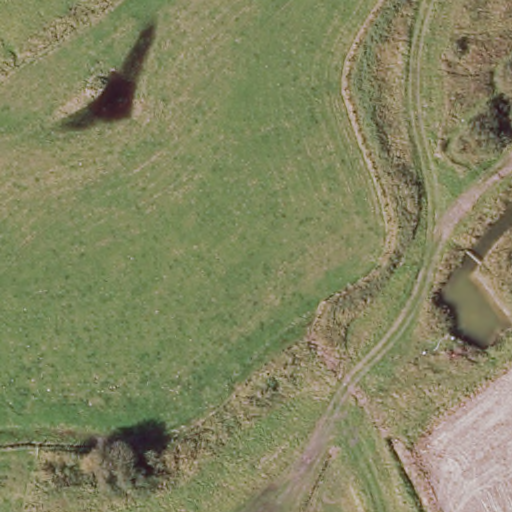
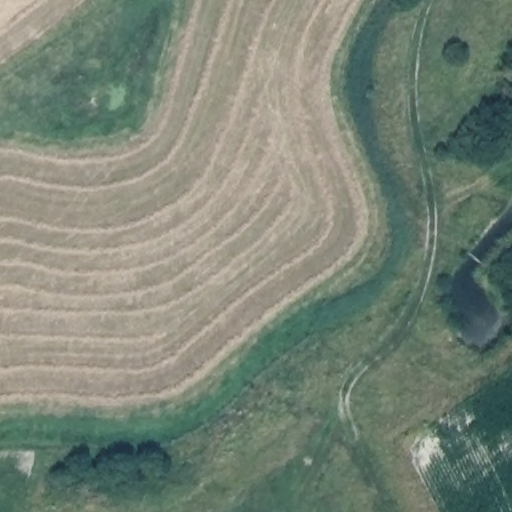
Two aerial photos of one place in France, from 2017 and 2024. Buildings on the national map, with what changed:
[]

